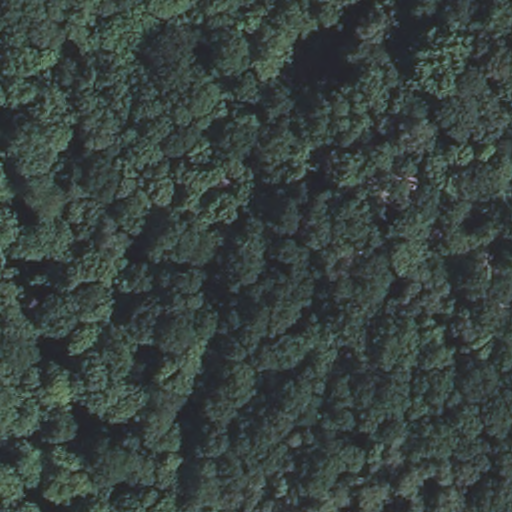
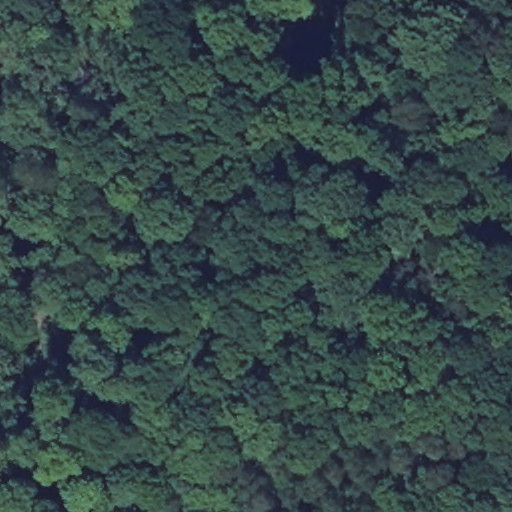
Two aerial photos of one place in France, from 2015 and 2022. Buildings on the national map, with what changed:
[]

